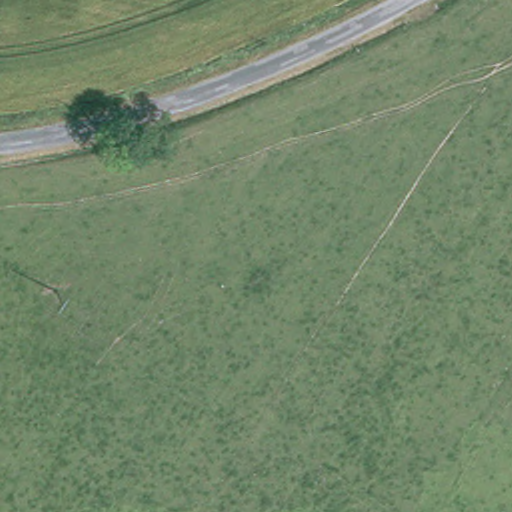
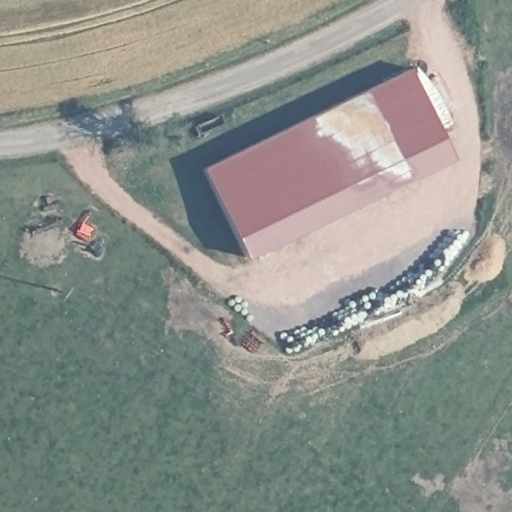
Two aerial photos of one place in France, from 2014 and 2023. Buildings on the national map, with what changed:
new [(410,68),(442,136),(397,159),(364,91),(410,68)]
new [(364,91),(397,159),(234,236),(202,169),(364,91)]

